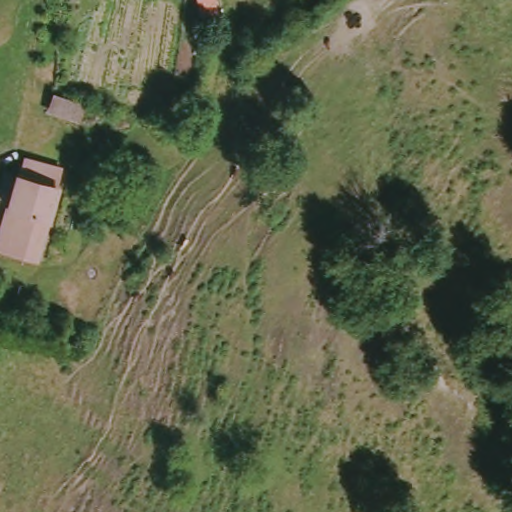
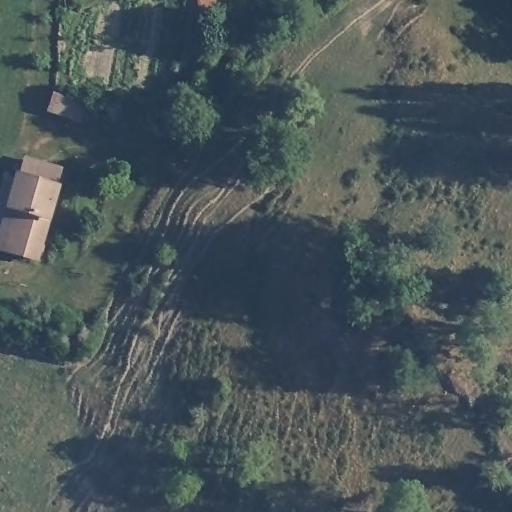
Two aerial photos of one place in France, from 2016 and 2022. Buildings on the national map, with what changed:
unchanged [(67,165),(45,263),(10,256),(18,214),(9,213),(16,177),(24,179),(27,158),(67,165)]

